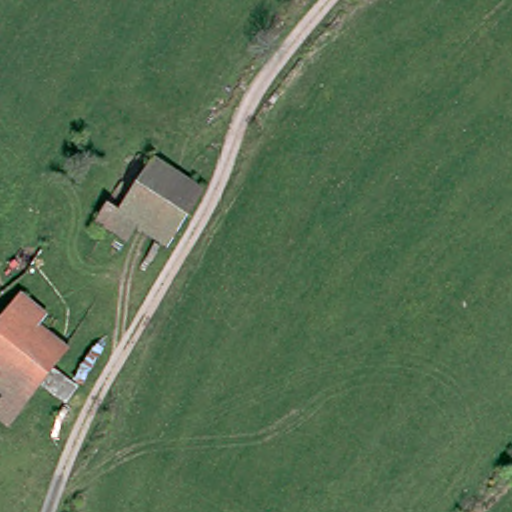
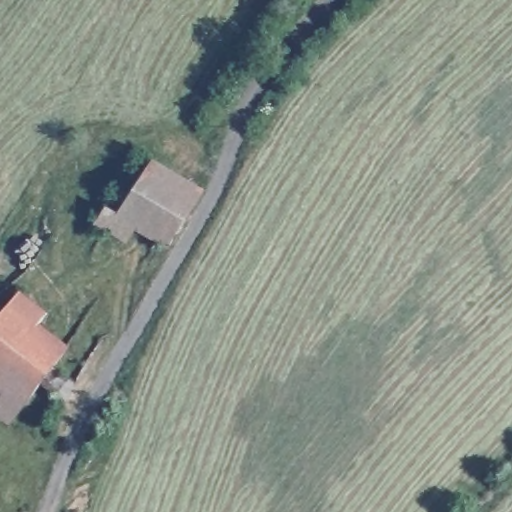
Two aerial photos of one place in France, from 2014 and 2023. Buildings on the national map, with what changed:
unchanged [(99,225),(111,206),(121,212),(130,200),(119,192),(127,180),(137,186),(139,185),(155,160),(204,192),(172,245),(140,224),(129,241),(111,229),(109,232),(99,225)]
unchanged [(10,430),(0,421),(0,403),(4,398),(0,396),(0,325),(19,302),(45,322),(37,334),(67,358),(35,397),(10,430)]

